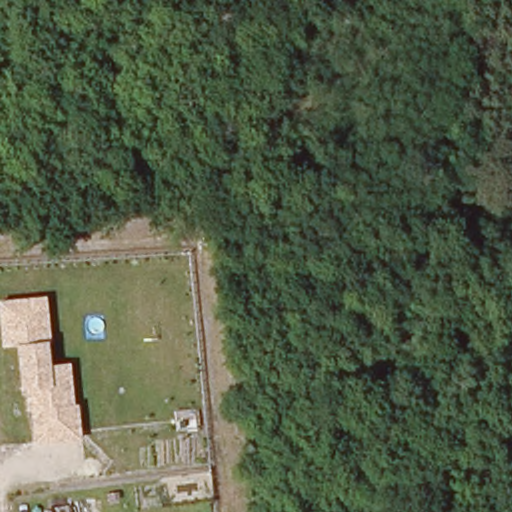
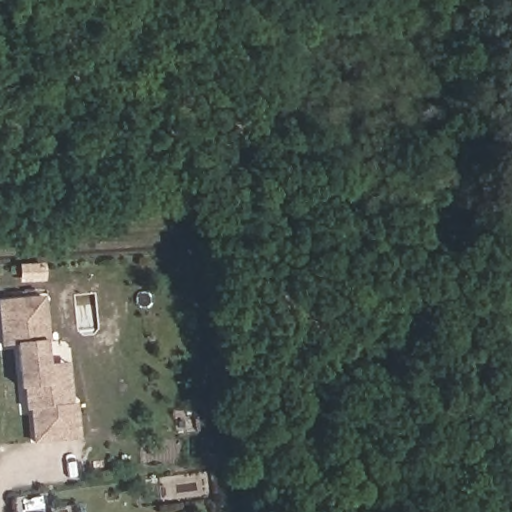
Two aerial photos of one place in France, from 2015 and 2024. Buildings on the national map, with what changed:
unchanged [(36,445),(33,413),(27,413),(26,391),(21,390),(17,347),(3,348),(0,308),(0,302),(46,297),(51,365),(69,363),(74,405),(77,405),(81,440),(36,445)]

